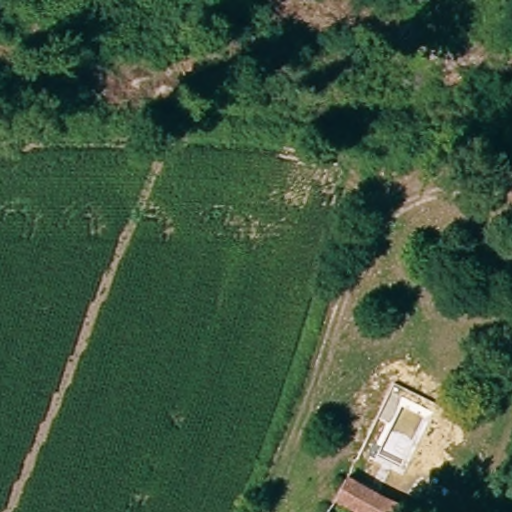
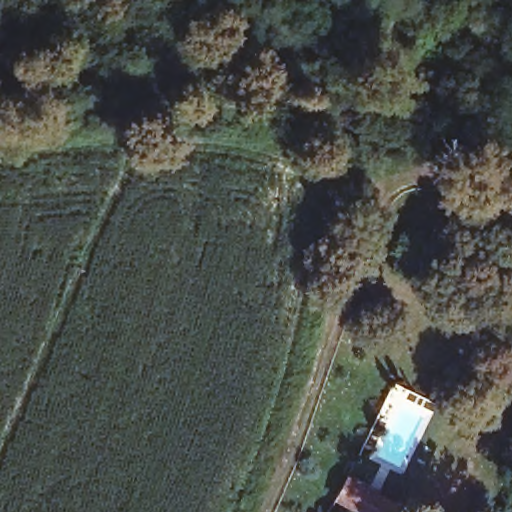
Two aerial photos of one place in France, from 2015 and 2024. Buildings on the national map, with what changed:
unchanged [(337,468),(397,498),(389,512),(363,512),(325,492),(337,468)]

